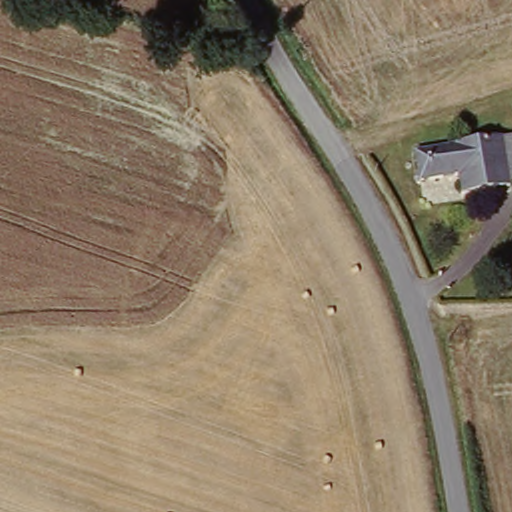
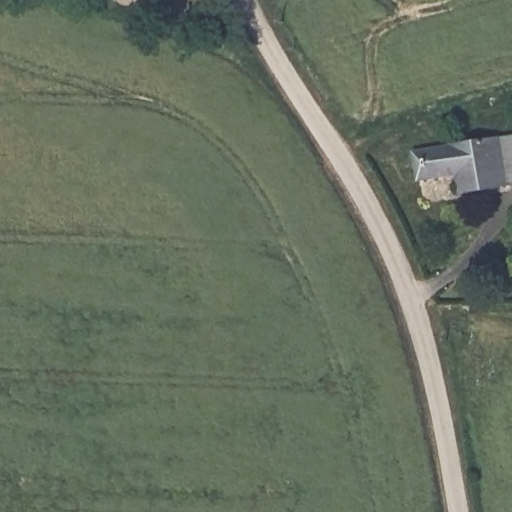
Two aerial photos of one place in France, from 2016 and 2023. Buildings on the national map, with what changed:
unchanged [(505,135),(512,134),(512,178),(511,178),(511,184),(464,195),(457,171),(422,179),(417,155),(469,143),(505,135)]

